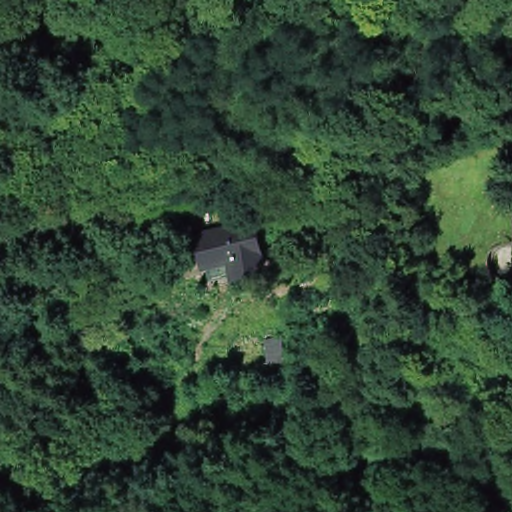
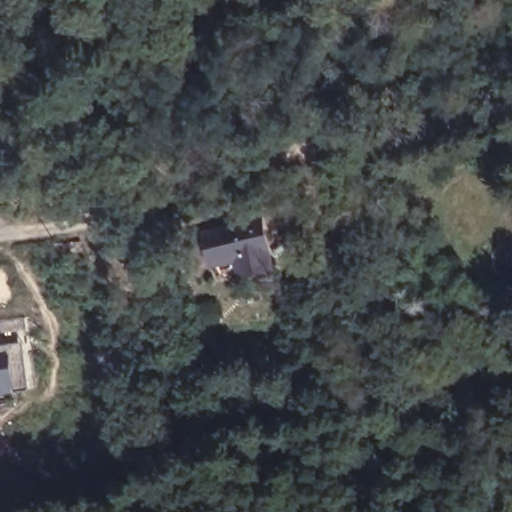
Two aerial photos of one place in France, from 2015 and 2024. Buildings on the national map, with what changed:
unchanged [(214,248),(207,224),(258,211),(269,254),(245,260),(218,266),(214,248)]
new [(0,391),(0,343),(21,339),(22,387),(0,391)]

